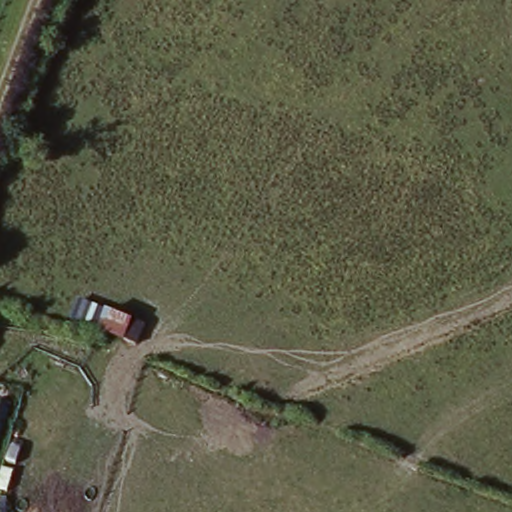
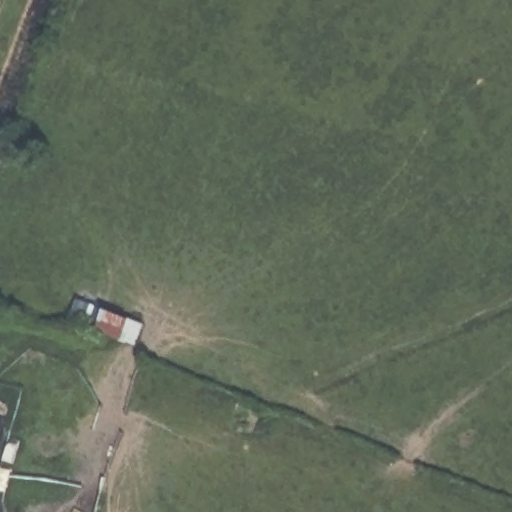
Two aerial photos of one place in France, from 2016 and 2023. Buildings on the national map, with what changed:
unchanged [(144,327),(136,346),(101,331),(108,312),(144,327)]

